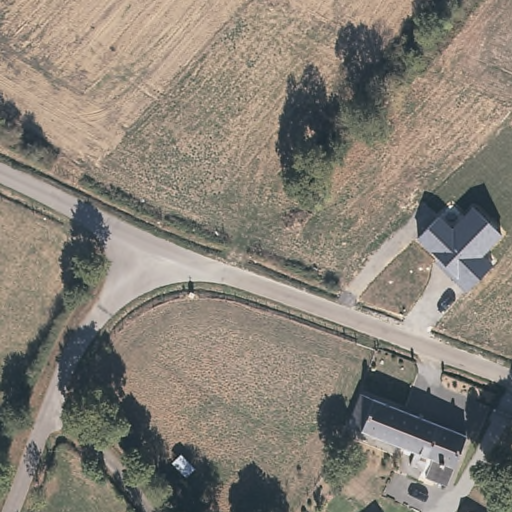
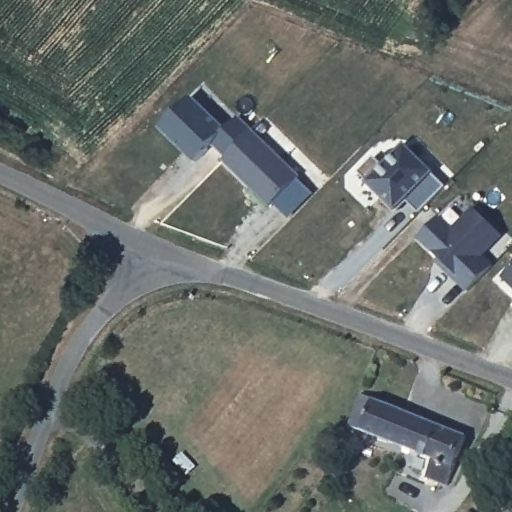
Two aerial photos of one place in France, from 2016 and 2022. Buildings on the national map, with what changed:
unchanged [(226,155),(217,143),(196,163),(164,129),(193,99),(225,129),(240,117),(250,128),(226,155)]
new [(298,175),(296,178),(313,194),(290,219),(273,203),(270,207),(221,161),(226,155),(250,128),(298,175)]
new [(433,172),(431,173),(445,186),(418,213),(407,204),(395,214),(380,200),(382,198),(365,182),(366,180),(358,173),(375,156),(383,164),(405,143),(433,172)]
unchanged [(440,219),(450,229),(471,208),(503,238),(485,257),(492,264),(467,292),(436,262),(438,259),(418,240),(440,219)]
new [(503,279),(512,269),(512,288),(503,279)]
unchanged [(469,435),(452,483),(424,473),(428,459),(418,452),(347,428),(359,398),(469,435)]

